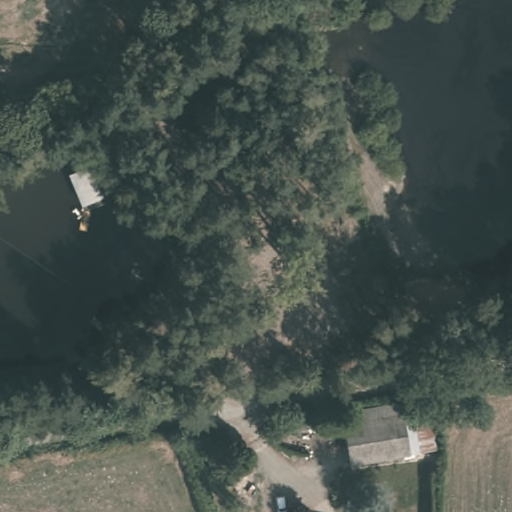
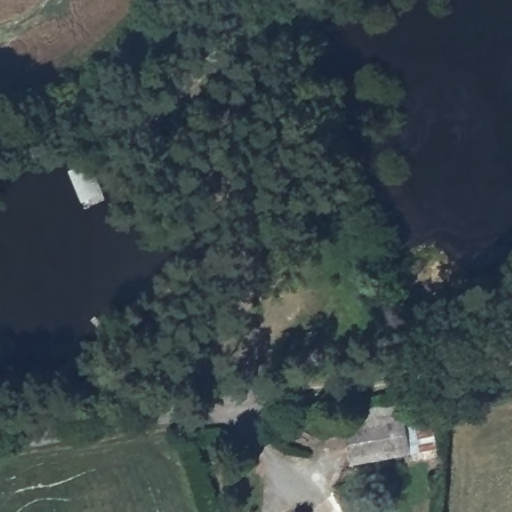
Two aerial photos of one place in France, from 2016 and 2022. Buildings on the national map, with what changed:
unchanged [(331,423),(389,414),(408,412),(414,449),(394,452),(336,460),(331,423)]

